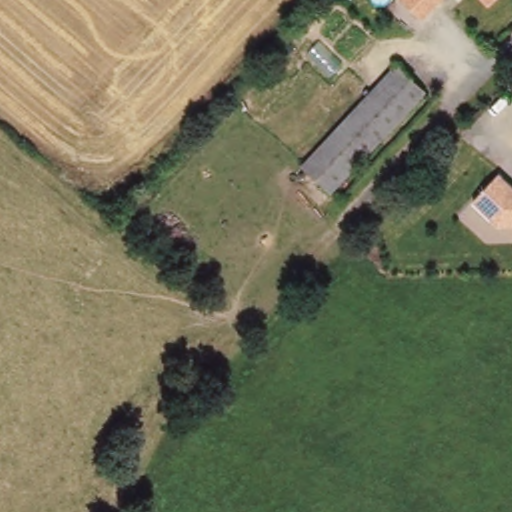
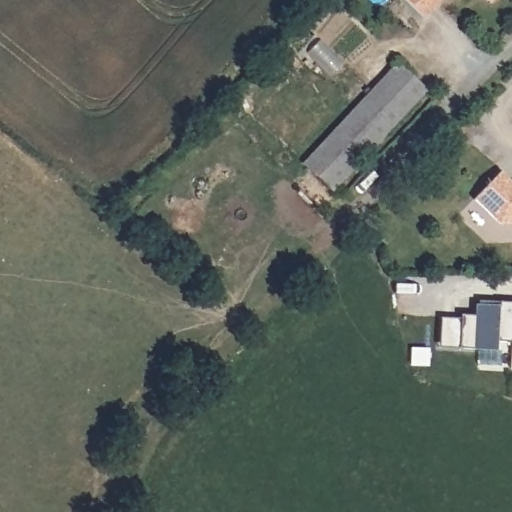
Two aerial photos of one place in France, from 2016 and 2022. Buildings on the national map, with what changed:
unchanged [(419,19),(399,0),(437,0),(419,19)]
unchanged [(481,0),(492,0),(486,5),(481,0)]
unchanged [(304,165),(393,65),(422,91),(333,191),(304,165)]
unchanged [(497,225),(470,203),(500,174),(510,188),(512,188),(512,224),(497,225)]
new [(456,323),(456,319),(472,319),(472,309),(495,310),(495,305),(510,306),(508,345),(492,344),(492,353),(455,352),(435,351),(436,322),(456,323)]
new [(510,306),(512,306),(512,345),(508,345),(510,306)]

